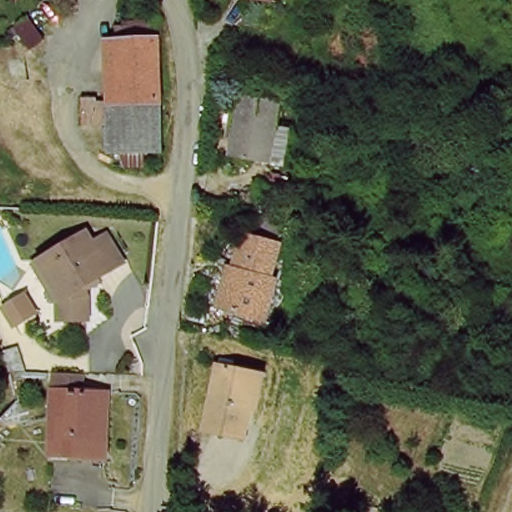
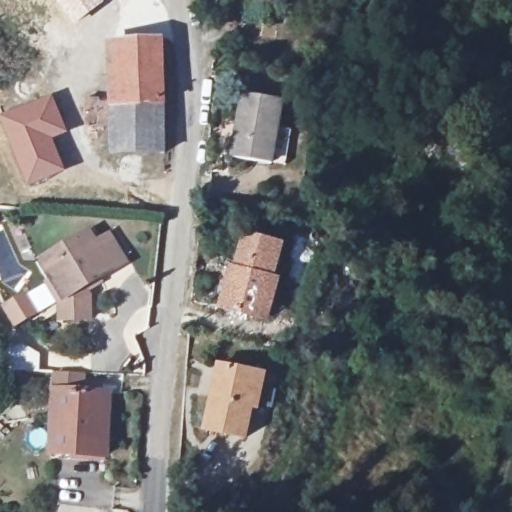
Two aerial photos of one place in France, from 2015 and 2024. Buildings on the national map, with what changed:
new [(75,25),(55,0),(103,0),(104,2),(75,25)]
unchanged [(242,1),(242,0),(286,0),(286,2),(242,1)]
unchanged [(30,52),(15,33),(26,22),(43,43),(30,52)]
unchanged [(168,153),(113,157),(111,125),(86,124),(88,101),(99,101),(100,107),(115,107),(114,71),(120,70),(120,47),(163,44),(168,153)]
new [(69,133),(54,140),(65,171),(26,186),(0,117),(0,114),(51,92),(69,133)]
unchanged [(284,165),(235,159),(238,97),(286,100),(284,165)]
new [(20,262),(29,270),(13,292),(3,284),(0,280),(0,225),(2,225),(20,262)]
unchanged [(104,247),(114,239),(131,263),(85,293),(90,318),(60,323),(55,298),(63,297),(60,282),(48,279),(43,266),(95,234),(104,247)]
unchanged [(263,319),(221,306),(231,276),(243,282),(256,236),(286,247),(263,319)]
unchanged [(249,440),(208,432),(217,363),(259,370),(249,440)]
unchanged [(110,397),(108,461),(56,455),(58,384),(58,373),(80,374),(83,393),(110,397)]

